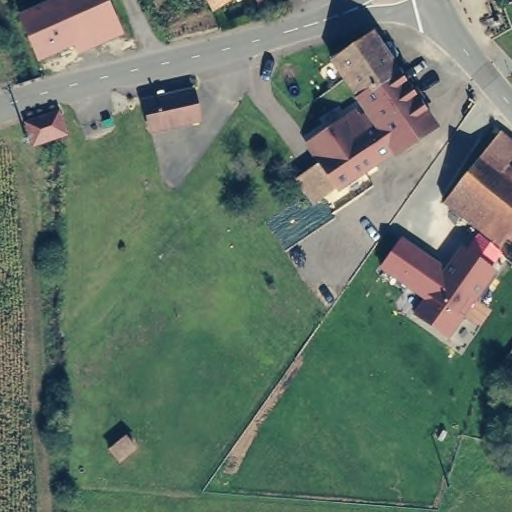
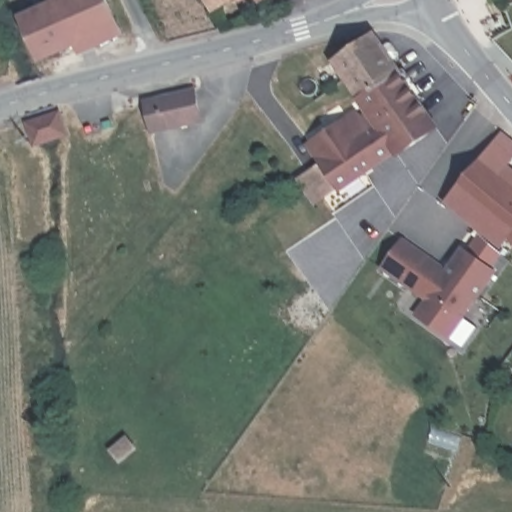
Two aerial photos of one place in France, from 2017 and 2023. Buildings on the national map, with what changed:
unchanged [(45,64),(27,23),(60,8),(57,0),(109,0),(122,30),(45,64)]
unchanged [(208,0),(230,0),(214,10),(208,0)]
unchanged [(237,0),(242,0),(238,2),(237,0)]
unchanged [(315,69),(329,61),(376,29),(389,42),(402,56),(393,62),(404,71),(411,86),(366,119),(360,105),(357,102),(340,77),(327,86),(315,69)]
unchanged [(200,111),(152,121),(145,92),(195,81),(200,111)]
unchanged [(360,105),(366,119),(411,86),(440,126),(395,157),(391,152),(314,207),(294,177),(314,162),(301,142),(357,102),(360,105)]
unchanged [(30,146),(25,127),(43,123),(62,119),(67,140),(49,142),(30,146)]
unchanged [(512,232),(505,241),(483,222),(481,224),(450,197),(505,127),(512,133),(512,161),(507,169),(512,173),(512,232)]
unchanged [(483,222),(505,241),(499,251),(502,253),(490,267),(497,272),(449,340),(411,316),(422,300),(380,270),(402,238),(447,267),(462,245),(467,248),(481,224),(483,222)]

